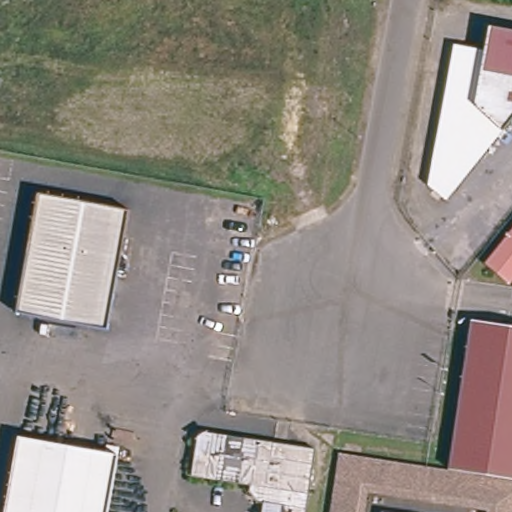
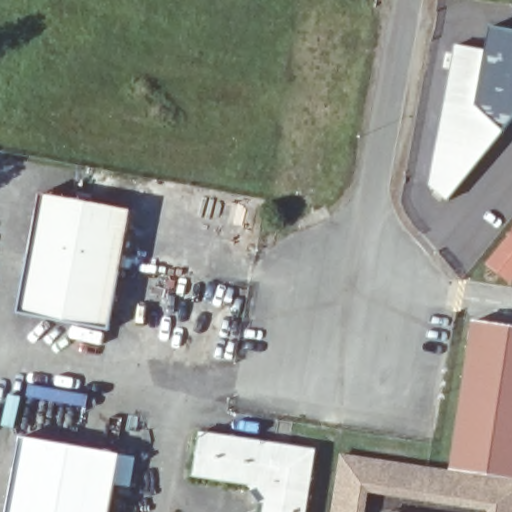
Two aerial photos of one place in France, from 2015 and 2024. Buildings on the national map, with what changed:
unchanged [(431,192),(457,45),(487,51),(491,26),(512,30),(512,124),(451,201),(431,192)]
unchanged [(111,330),(20,314),(41,194),(132,210),(111,330)]
unchanged [(512,246),(512,282),(494,267),(512,246)]
unchanged [(470,390),(483,323),(483,319),(512,324),(512,478),(457,468),(470,390)]
unchanged [(260,500),(253,490),(254,483),(195,473),(203,429),(297,445),(319,449),(308,512),(265,512),(266,501),(260,500)]
unchanged [(6,512),(22,435),(120,456),(109,512),(6,512)]
unchanged [(512,480),(512,512),(504,512),(505,504),(370,480),(364,512),(339,512),(350,451),(512,480)]
unchanged [(393,512),(384,512),(384,510),(393,512)]

